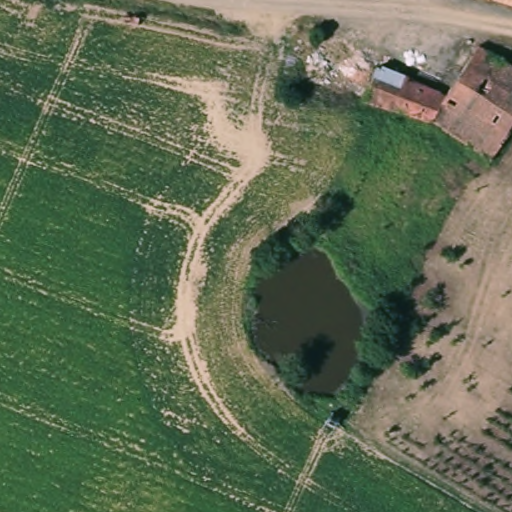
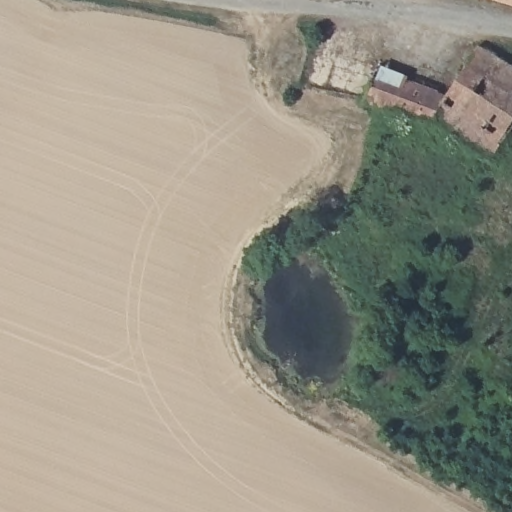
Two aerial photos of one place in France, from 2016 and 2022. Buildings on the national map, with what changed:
unchanged [(500,0),(512,0),(512,3),(500,0)]
unchanged [(435,124),(396,112),(408,80),(447,95),(481,46),(512,68),(512,131),(493,160),(461,140),(444,130),(435,124)]
unchanged [(366,102),(380,70),(408,80),(396,112),(366,102)]

